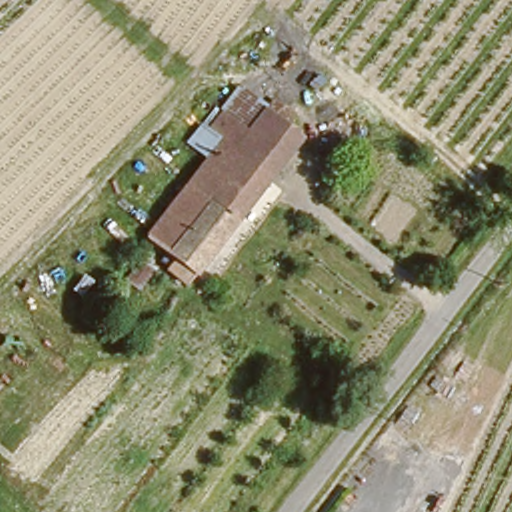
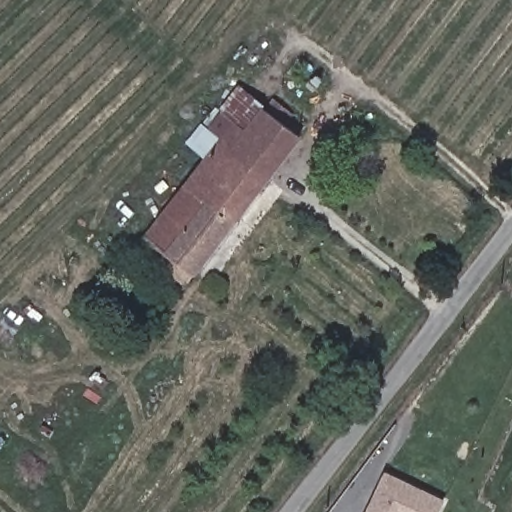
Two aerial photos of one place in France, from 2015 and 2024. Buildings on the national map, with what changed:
unchanged [(164,267),(173,254),(155,239),(226,147),(206,131),(225,109),(243,124),(258,105),(298,137),(267,177),(192,276),(186,283),(164,267)]
new [(374,502),(388,473),(445,500),(439,512),(370,512),(374,502)]

